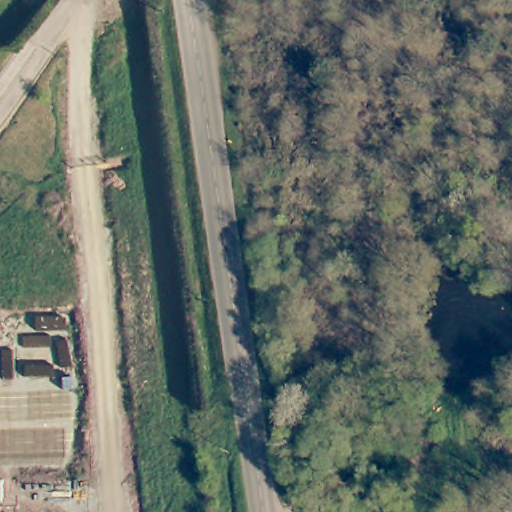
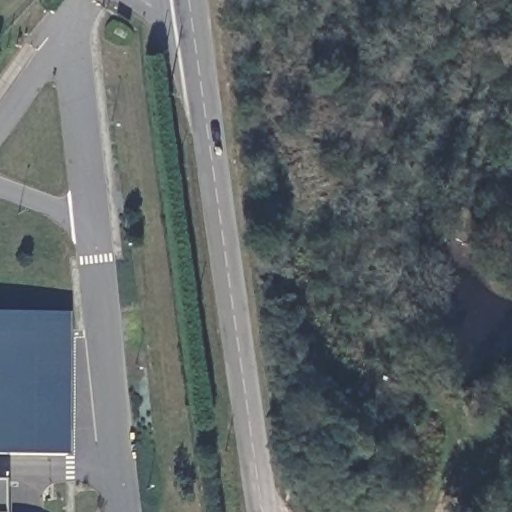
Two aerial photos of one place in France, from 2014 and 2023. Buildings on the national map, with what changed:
new [(68,313),(67,455),(0,455),(0,312),(68,313)]
new [(2,481),(2,512),(0,512),(0,481),(2,481)]

